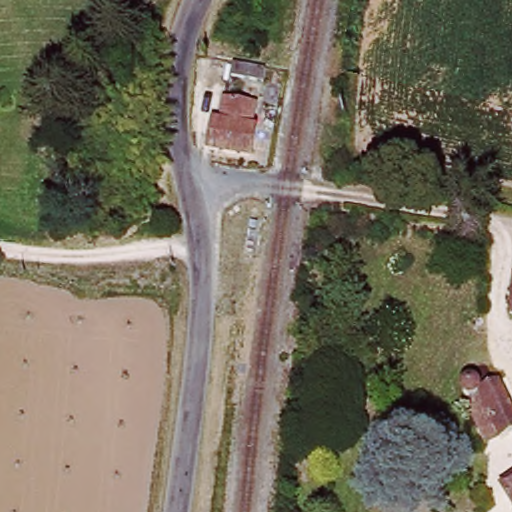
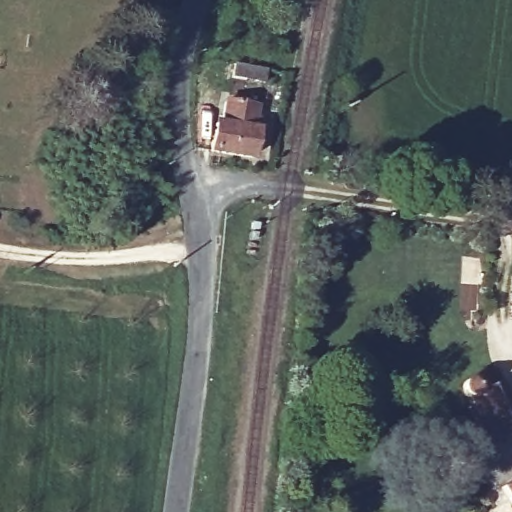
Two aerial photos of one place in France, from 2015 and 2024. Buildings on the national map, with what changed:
unchanged [(267,91),(237,84),(241,68),(270,75),(267,91)]
unchanged [(256,135),(251,160),(215,152),(222,126),(229,127),(231,115),(232,106),(256,111),(255,121),(252,133),(256,135)]
unchanged [(511,313),(511,270),(512,270),(512,313),(511,313)]
unchanged [(470,419),(467,419),(460,398),(457,388),(460,380),(467,378),(472,379),(481,387),(497,380),(512,409),(512,432),(495,440),(479,446),(470,419)]
unchanged [(501,484),(512,479),(512,510),(501,484)]

